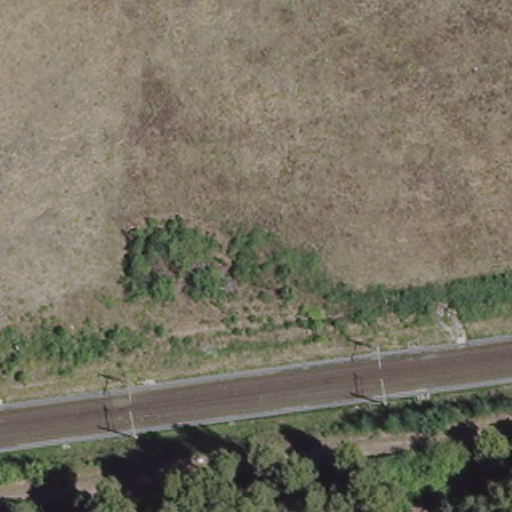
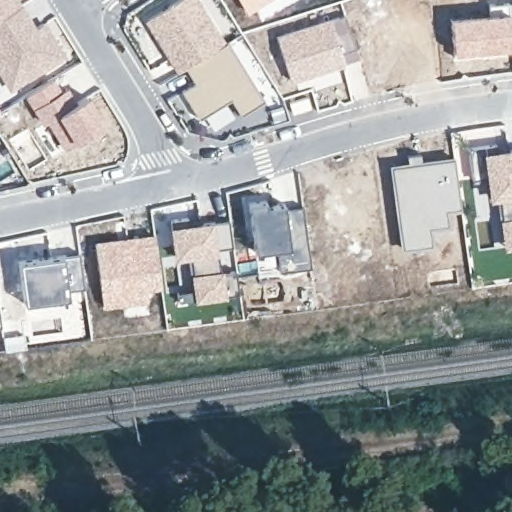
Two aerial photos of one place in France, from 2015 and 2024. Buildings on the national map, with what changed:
new [(11,25),(18,35),(40,22),(59,54),(8,85),(0,71),(0,15),(0,0),(14,0),(17,5),(24,17),(11,25)]
new [(183,65),(177,69),(147,22),(185,0),(197,0),(225,39),(183,65)]
new [(245,11),(239,0),(263,0),(245,11)]
new [(512,1),(512,34),(510,11),(490,14),(488,4),(512,1)]
new [(510,11),(512,33),(512,49),(455,54),(451,17),(510,11)]
new [(345,15),(360,58),(346,64),(290,81),(275,35),(332,18),(345,15)]
new [(183,65),(225,39),(235,55),(252,82),(262,98),(238,113),(227,97),(197,116),(192,110),(192,109),(178,89),(192,80),(183,65)]
new [(68,151),(49,121),(44,124),(26,95),(52,80),(61,94),(67,90),(75,104),(87,97),(105,126),(68,151)]
new [(503,249),(500,217),(497,198),(487,199),(481,150),(512,146),(512,247),(503,249)]
new [(407,161),(405,154),(420,152),(422,160),(452,156),(460,210),(455,211),(456,224),(430,229),(432,244),(400,248),(388,164),(407,161)]
new [(257,252),(250,202),(267,199),(268,205),(287,203),(287,208),(302,206),(311,265),(280,270),(277,249),(257,252)]
new [(222,269),(223,271),(234,270),(238,292),(227,294),(227,297),(194,301),(190,272),(187,257),(172,259),(168,225),(214,220),(228,220),(230,249),(218,250),(220,270),(222,269)]
new [(155,234),(161,290),(157,290),(158,295),(152,296),(152,300),(102,308),(93,240),(155,234)]
new [(60,255),(77,252),(82,286),(67,285),(68,297),(25,303),(20,261),(60,255)]
new [(0,316),(2,326),(0,326),(0,316)]

